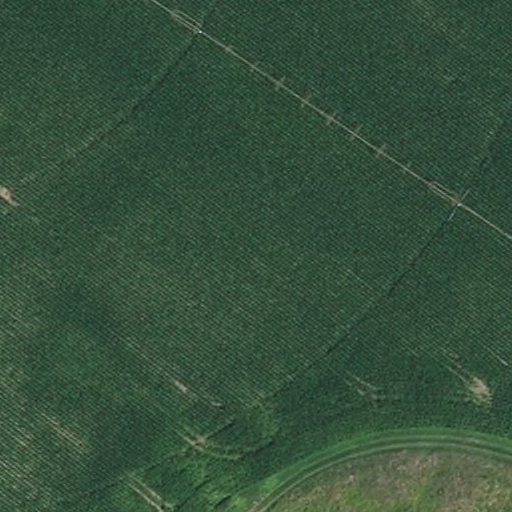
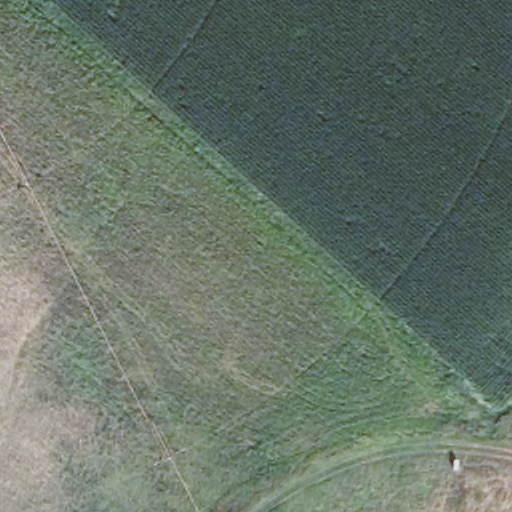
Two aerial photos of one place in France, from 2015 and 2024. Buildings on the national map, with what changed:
[]

